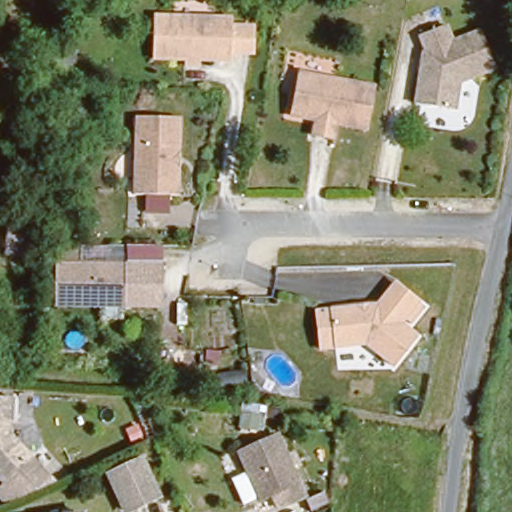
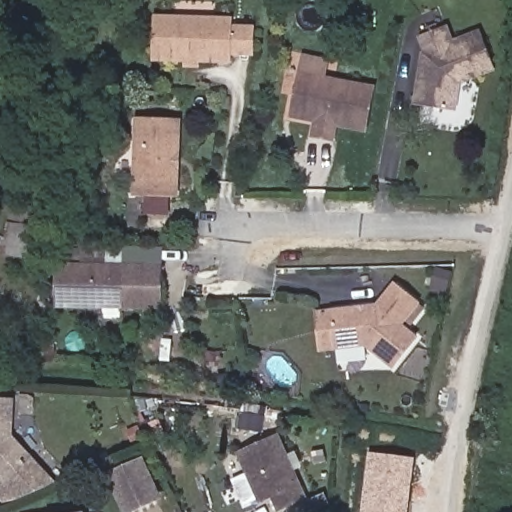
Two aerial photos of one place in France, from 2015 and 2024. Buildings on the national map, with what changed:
unchanged [(184,67),(184,61),(151,61),(152,19),(230,19),(230,28),(251,29),(251,54),(230,54),(230,62),(196,61),(196,67),(184,67)]
unchanged [(423,56),(426,55),(420,37),(446,28),(452,45),(481,34),(495,71),(458,85),(453,114),(415,107),(423,56)]
unchanged [(371,85),(362,129),(332,123),(330,138),(310,134),(312,119),(288,113),(297,70),(371,85)]
unchanged [(179,116),(178,194),(135,194),(136,115),(179,116)]
unchanged [(1,255),(4,222),(5,207),(27,209),(25,224),(22,257),(1,255)]
unchanged [(130,264),(129,284),(121,284),(121,304),(51,304),(51,264),(130,264)]
unchanged [(121,284),(129,284),(130,264),(156,265),(156,305),(121,304),(121,284)]
unchanged [(318,309),(333,308),(380,304),(397,283),(420,303),(426,307),(411,324),(406,319),(402,324),(417,337),(393,366),(367,343),(336,345),(321,346),(318,309)]
unchanged [(5,484),(4,484),(0,480),(0,396),(12,397),(12,437),(25,454),(30,459),(5,484)]
unchanged [(230,479),(246,472),(239,454),(274,438),(302,500),(278,509),(270,495),(258,499),(257,497),(242,504),(230,479)]
new [(368,452),(416,458),(408,512),(362,512),(368,452)]
unchanged [(140,458),(157,494),(125,509),(108,473),(140,458)]
unchanged [(5,484),(30,459),(56,481),(6,504),(0,499),(0,491),(5,484)]

